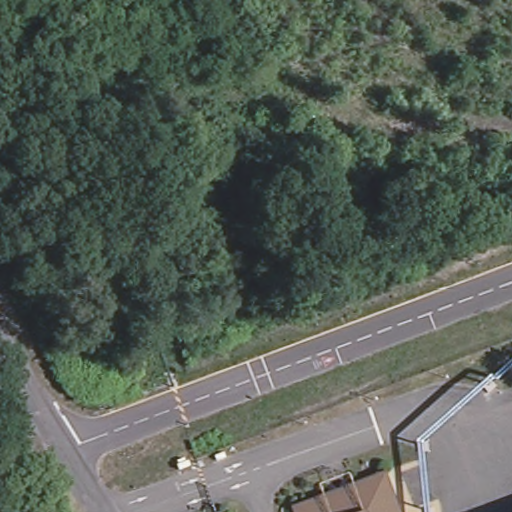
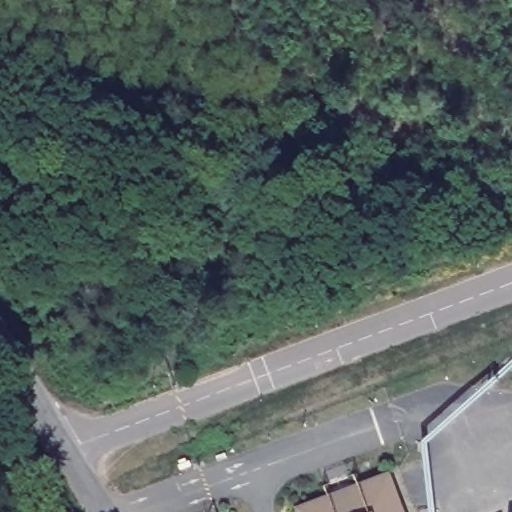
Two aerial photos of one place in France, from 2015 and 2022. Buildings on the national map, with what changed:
unchanged [(304,511),(306,504),(311,499),(376,473),(385,474),(386,474),(393,479),(405,512),(304,512),(304,511)]

